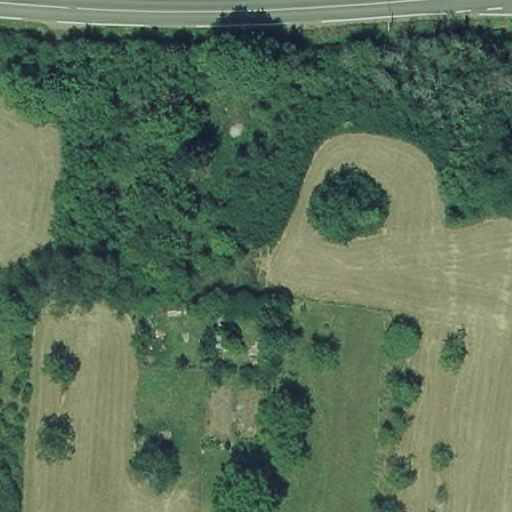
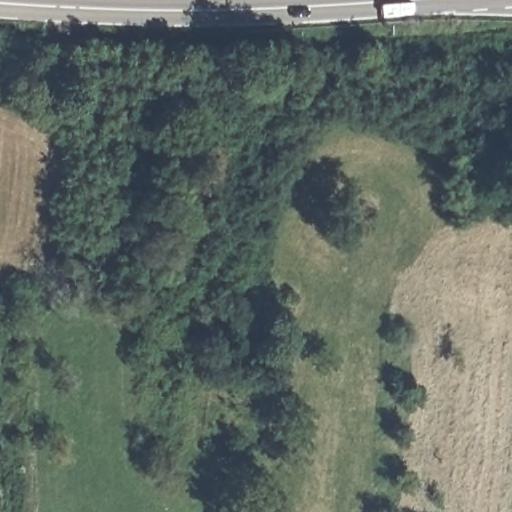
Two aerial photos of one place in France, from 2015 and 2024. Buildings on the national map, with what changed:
unchanged [(224,320),(223,347),(206,348),(207,321),(208,320),(224,320)]

